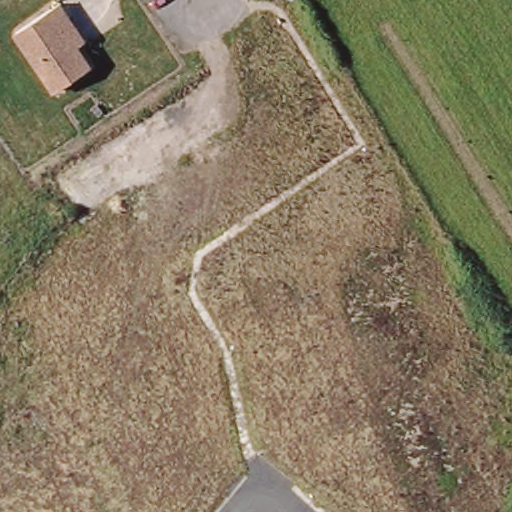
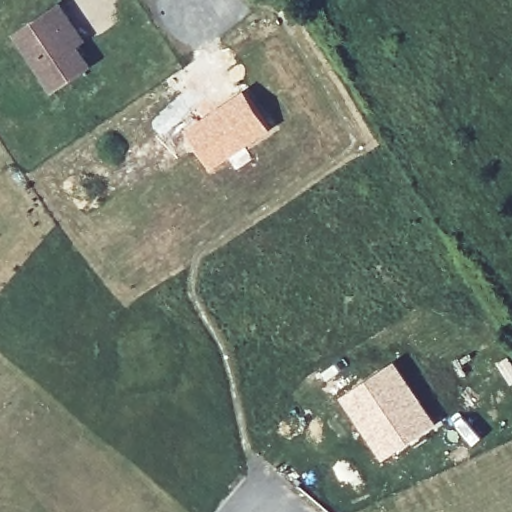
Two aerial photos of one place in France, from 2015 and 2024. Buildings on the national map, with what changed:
unchanged [(54,95),(15,36),(58,7),(69,22),(84,45),(75,50),(89,71),(54,95)]
new [(243,89),(271,129),(245,147),(252,158),(235,170),(227,159),(211,170),(185,130),(243,89)]
new [(395,358),(437,422),(382,461),(338,398),(395,358)]

